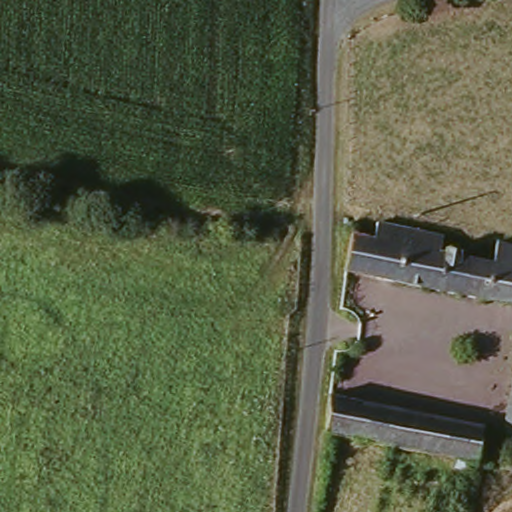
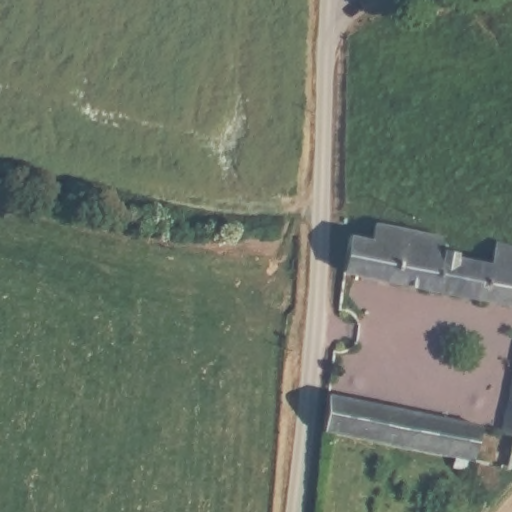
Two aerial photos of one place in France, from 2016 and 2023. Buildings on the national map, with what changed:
unchanged [(370,238),(372,222),(438,236),(435,251),(440,253),(440,248),(452,250),(453,256),(489,261),(492,242),(512,247),(512,305),(340,270),(347,234),(370,238)]
unchanged [(331,394),(484,425),(476,461),(326,432),(331,394)]
unchanged [(509,430),(512,415),(512,432),(509,430)]

